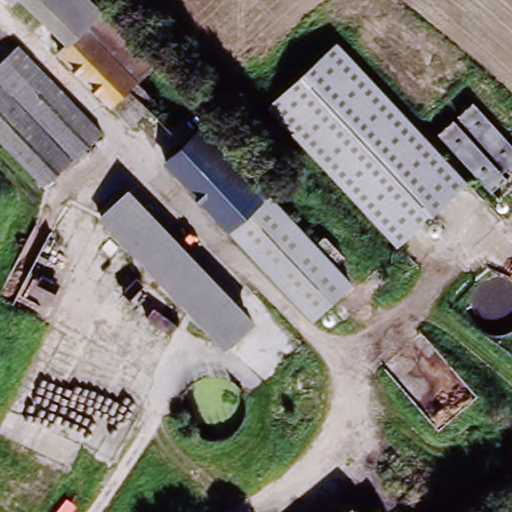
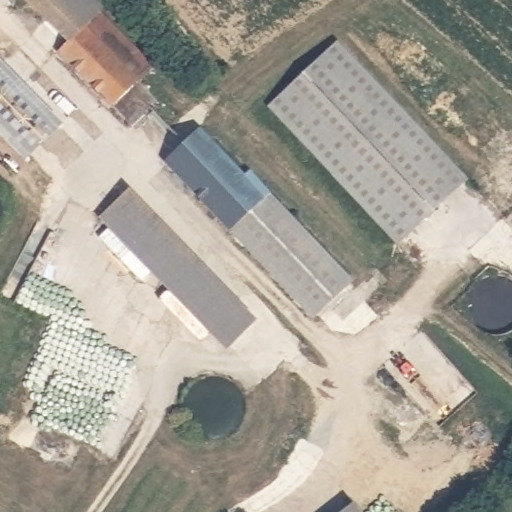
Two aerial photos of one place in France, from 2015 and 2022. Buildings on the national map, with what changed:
unchanged [(119,101),(62,45),(73,34),(40,0),(102,0),(161,60),(119,101)]
unchanged [(467,176),(398,239),(271,106),(340,42),(467,176)]
demolished [(441,133),(476,99),(512,139),(512,173),(495,189),(441,133)]
unchanged [(310,315),(166,160),(205,125),(350,278),(310,315)]
unchanged [(132,194),(256,323),(229,348),(105,220),(132,194)]
unchanged [(365,512),(337,512),(355,498),(365,512)]

